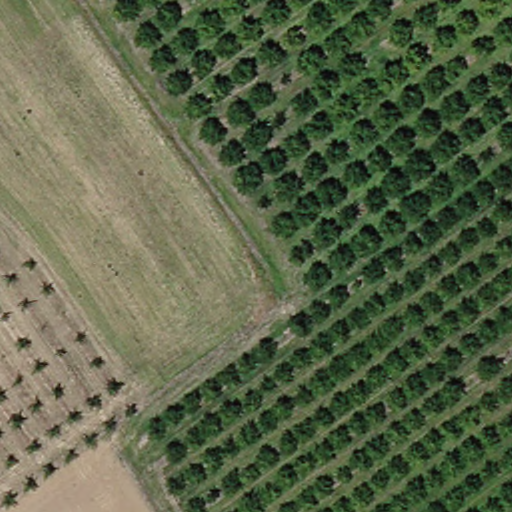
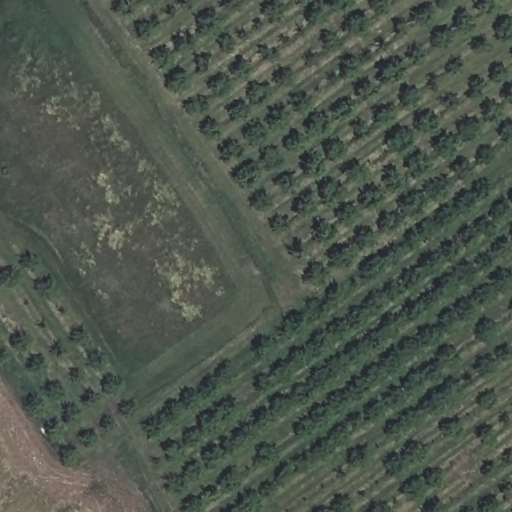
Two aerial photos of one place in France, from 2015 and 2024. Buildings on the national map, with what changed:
[]

